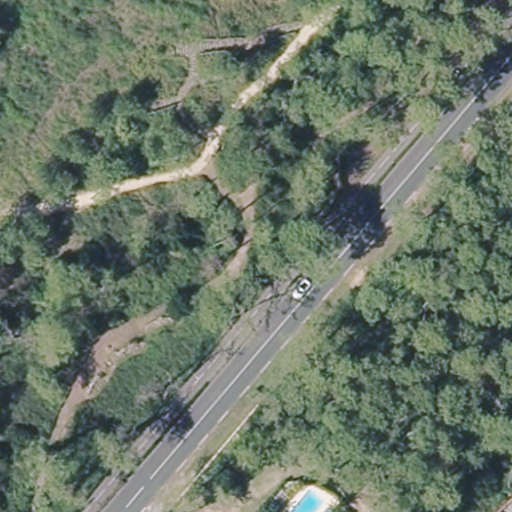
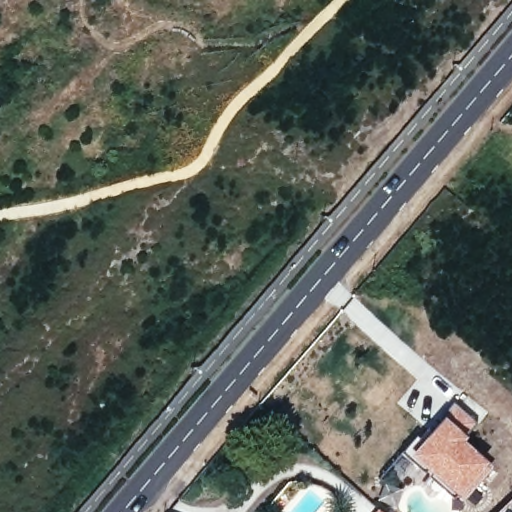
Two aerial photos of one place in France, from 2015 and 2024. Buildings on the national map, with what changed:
new [(475,422),(464,433),(468,437),(464,441),(487,462),(457,495),(410,455),(442,420),(438,417),(454,400),(475,422)]

